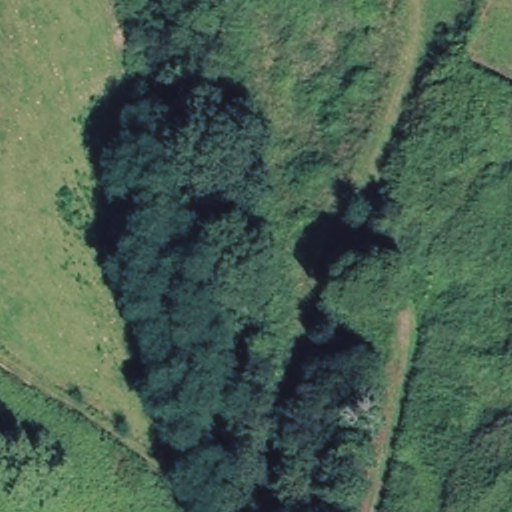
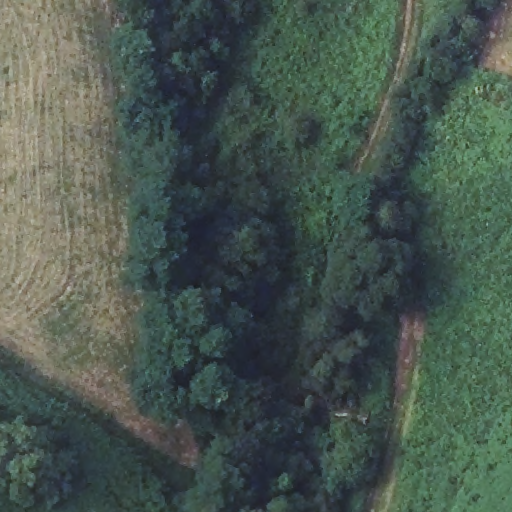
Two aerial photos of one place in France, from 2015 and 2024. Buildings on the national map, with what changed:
[]

